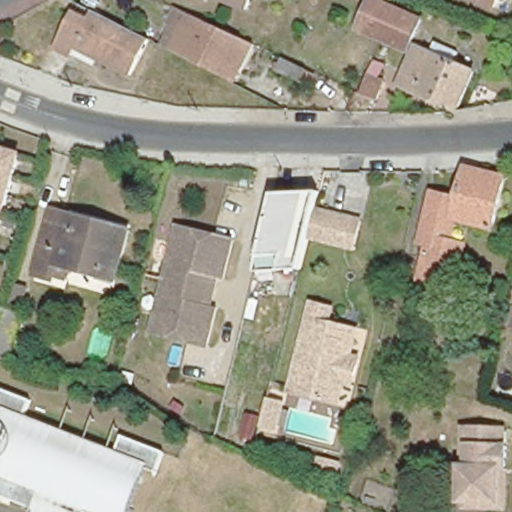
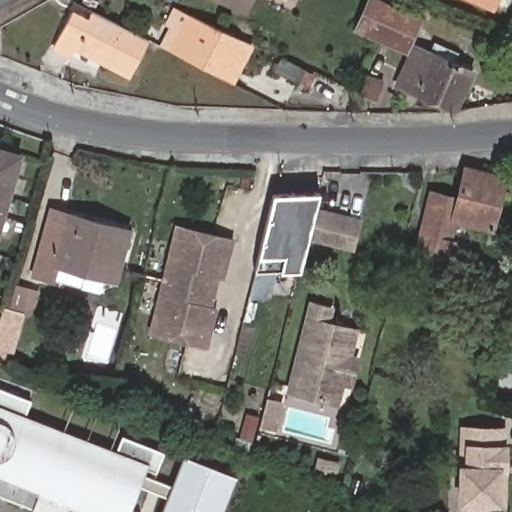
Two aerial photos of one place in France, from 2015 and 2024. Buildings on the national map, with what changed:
unchanged [(59,36),(75,9),(80,0),(86,0),(95,4),(127,20),(131,23),(157,36),(136,73),(78,44),(77,47),(74,52),(56,42),(59,36)]
unchanged [(226,0),(251,0),(247,9),(226,0)]
unchanged [(383,39),(358,28),(371,0),(374,0),(395,9),(419,20),(406,50),(383,39)]
unchanged [(483,0),(488,0),(487,2),(483,0)]
unchanged [(232,81),(172,51),(164,47),(177,21),(171,17),(175,8),(190,15),(251,44),(232,81)]
unchanged [(457,53),(452,64),(470,73),(453,110),(399,85),(416,48),(430,54),(435,43),(457,53)]
unchanged [(305,71),(299,81),(277,71),(282,60),(305,71)]
unchanged [(368,100),(355,95),(362,73),(377,78),(368,100)]
unchanged [(0,229),(0,155),(20,160),(0,229)]
unchanged [(423,254),(420,253),(432,209),(441,177),(468,182),(471,172),(511,180),(497,233),(461,224),(457,243),(467,246),(455,295),(422,287),(427,271),(420,269),(423,254)]
unchanged [(318,191),(313,211),(343,211),(342,239),(306,238),(297,271),(252,271),(273,192),(318,191)]
unchanged [(55,263),(51,277),(35,273),(52,209),(76,215),(62,266),(55,263)]
unchanged [(76,215),(127,229),(114,279),(62,266),(76,215)]
unchanged [(213,309),(202,348),(172,340),(148,334),(147,333),(176,227),(177,228),(202,234),(231,242),(221,281),(215,279),(207,308),(213,309)]
unchanged [(332,301),(328,316),(344,320),(357,324),(349,350),(355,352),(357,352),(351,378),(348,378),(342,376),(337,396),(289,384),(313,296),(332,301)]
unchanged [(22,312),(8,363),(0,362),(0,317),(3,306),(22,312)]
unchanged [(23,420),(114,455),(121,435),(164,452),(156,472),(142,467),(124,512),(83,512),(86,505),(40,487),(32,507),(0,495),(0,388),(31,400),(23,420)]
unchanged [(234,443),(242,410),(259,414),(263,395),(281,401),(273,429),(257,423),(251,447),(234,443)]
unchanged [(456,506),(456,501),(457,459),(459,428),(469,428),(500,429),(498,446),(501,446),(500,469),(498,508),(456,506)]
new [(167,496),(140,486),(132,509),(138,512),(124,512),(142,467),(147,469),(144,475),(172,484),(184,455),(236,475),(237,475),(223,512),(161,512),(167,496)]

